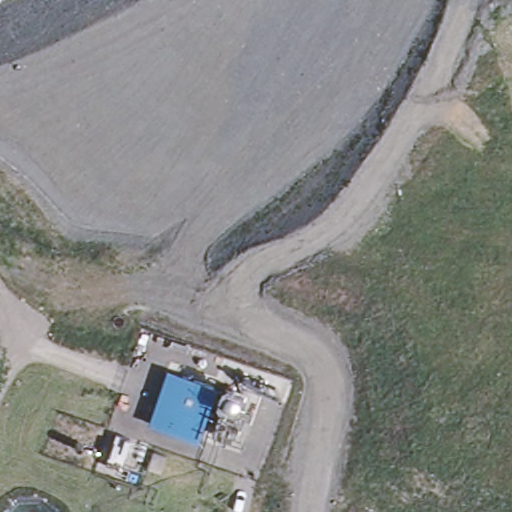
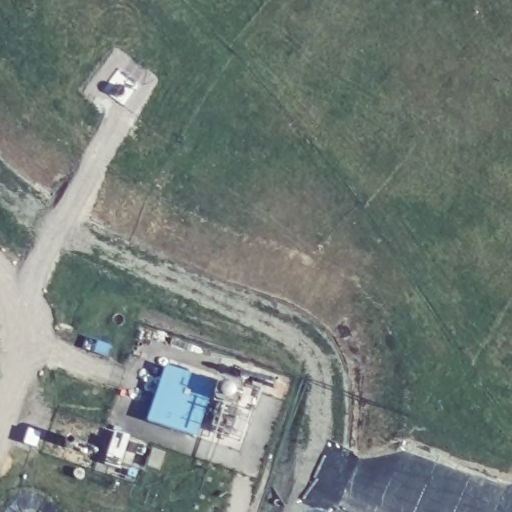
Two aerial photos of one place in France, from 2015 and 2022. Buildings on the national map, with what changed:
unchanged [(148,419),(159,395),(171,366),(215,385),(206,406),(193,437),(148,419)]

